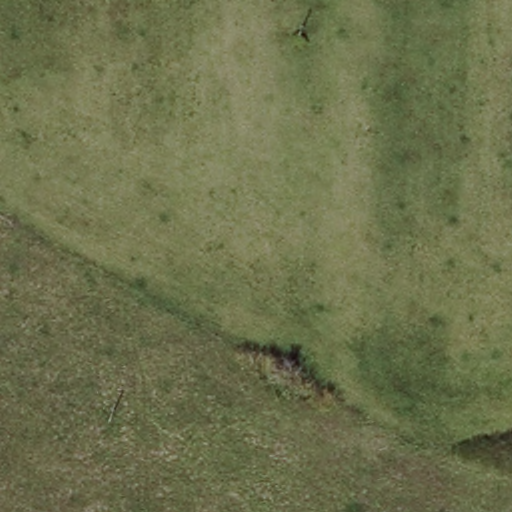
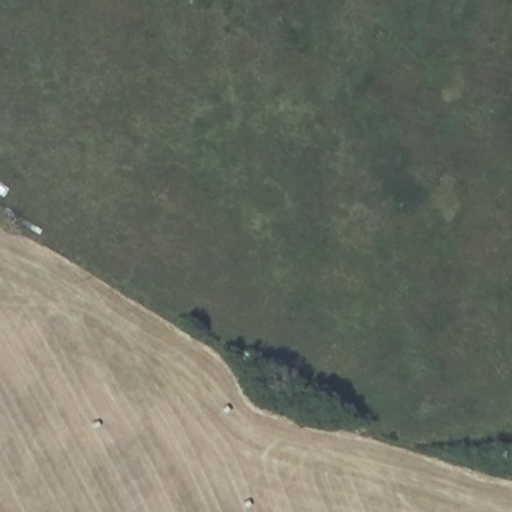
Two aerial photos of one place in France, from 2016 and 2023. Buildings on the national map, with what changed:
[]

